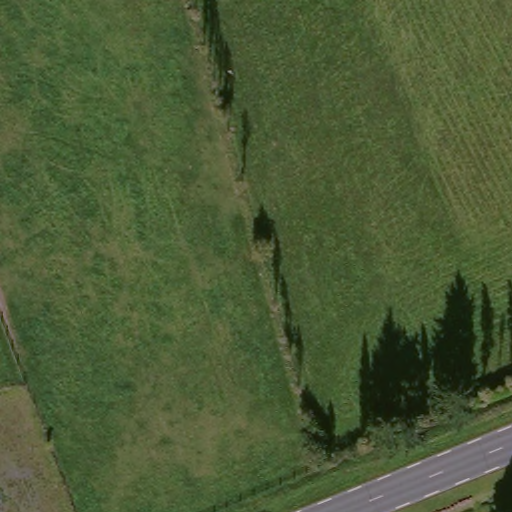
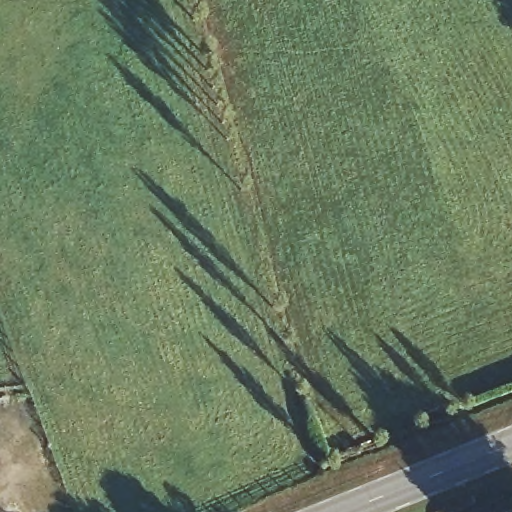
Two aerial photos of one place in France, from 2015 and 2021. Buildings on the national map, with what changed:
unchanged [(6,512),(0,512),(0,499),(6,512)]

